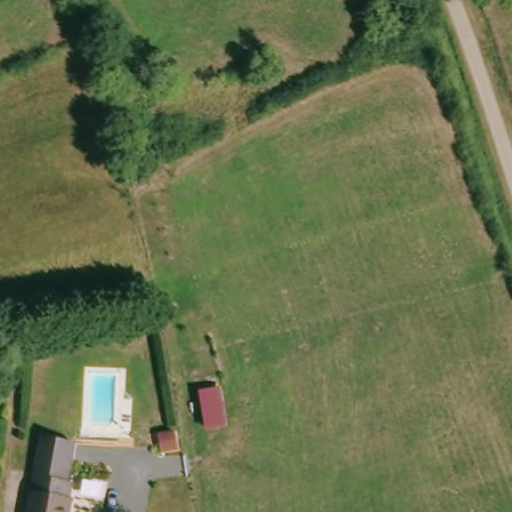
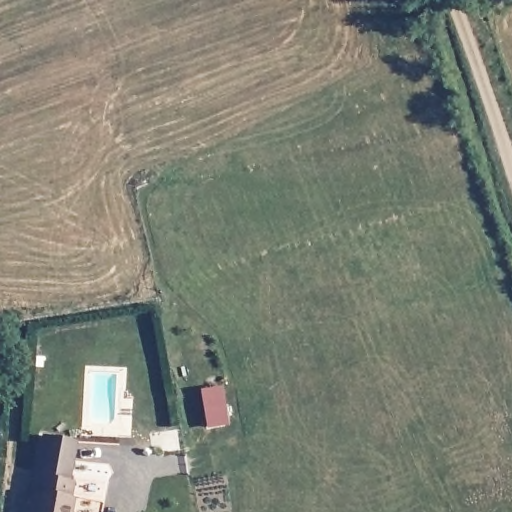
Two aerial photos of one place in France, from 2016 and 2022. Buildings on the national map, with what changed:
unchanged [(163,395),(170,439),(151,442),(143,397),(163,395)]
unchanged [(38,437),(71,445),(64,479),(68,480),(66,493),(70,495),(65,512),(22,512),(38,437)]

